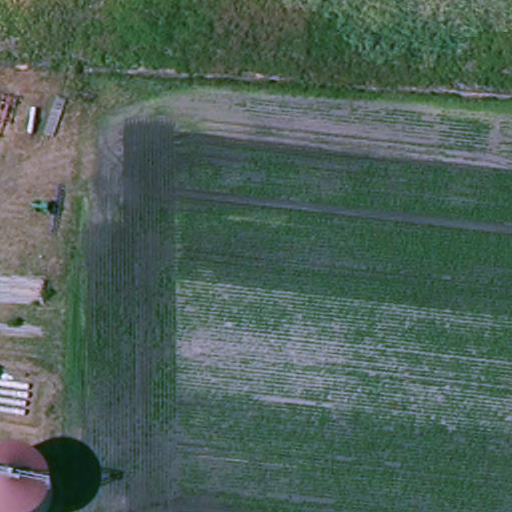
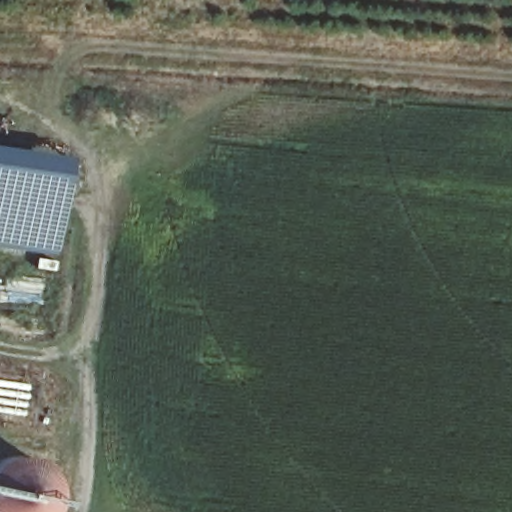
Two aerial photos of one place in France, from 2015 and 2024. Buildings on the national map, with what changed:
new [(0,243),(0,147),(71,157),(66,174),(57,252),(0,243)]
unchanged [(3,446),(9,445),(16,445),(22,445),(29,448),(34,451),(40,455),(43,459),(46,462),(49,466),(51,471),(52,477),(53,482),(52,487),(51,495),(50,500),(48,504),(46,509),(43,512),(0,512),(0,447),(3,446)]

